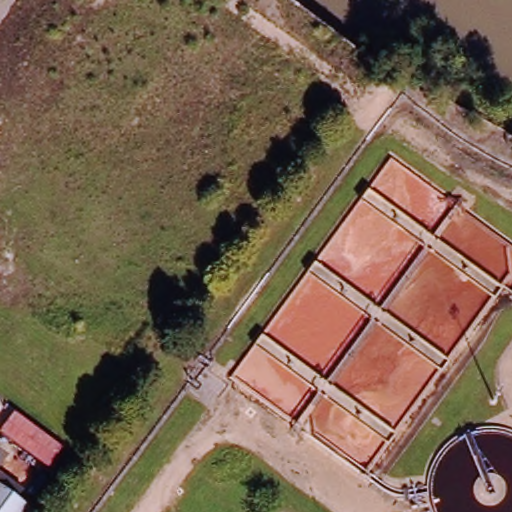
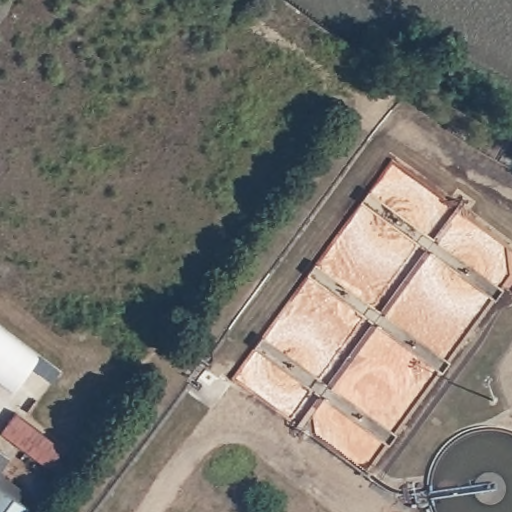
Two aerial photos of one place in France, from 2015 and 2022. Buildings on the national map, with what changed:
demolished [(13,0),(0,17),(0,0),(13,0)]
new [(40,355),(12,393),(0,384),(0,325),(40,355)]
unchanged [(9,458),(0,469),(0,451),(9,458)]
unchanged [(29,508),(26,512),(0,512),(0,483),(29,508)]

